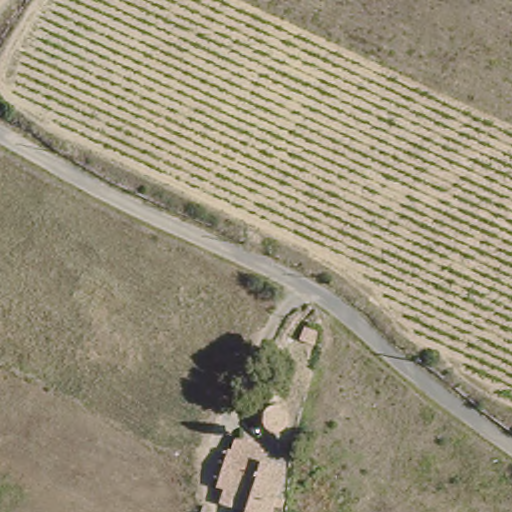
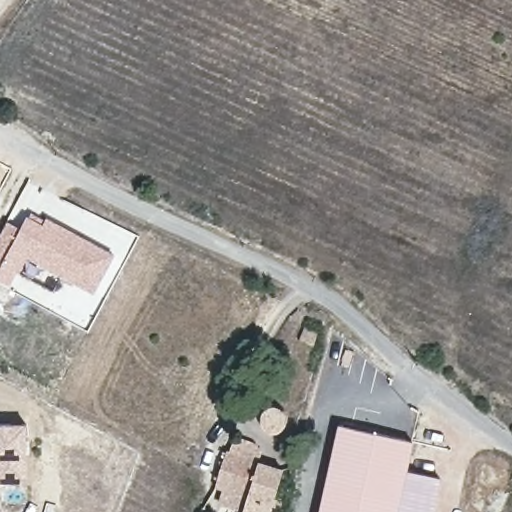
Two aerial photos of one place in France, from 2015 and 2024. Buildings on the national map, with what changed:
new [(27,215),(43,224),(47,217),(114,254),(94,292),(27,255),(19,271),(2,262),(27,215)]
new [(277,406),(282,408),(287,412),(289,419),(289,425),(285,430),(281,432),(277,434),(271,433),(267,431),(264,427),(262,422),(262,417),(264,412),(266,410),(271,407),(277,406)]
new [(27,422),(25,478),(0,479),(0,422),(27,422)]
new [(412,440),(397,512),(318,512),(338,423),(412,440)]
unchanged [(243,512),(241,512),(222,506),(225,495),(217,492),(232,442),(260,450),(257,463),(243,512)]
unchanged [(269,512),(243,512),(257,463),(280,470),(269,512)]
new [(440,477),(433,512),(397,512),(405,470),(440,477)]

